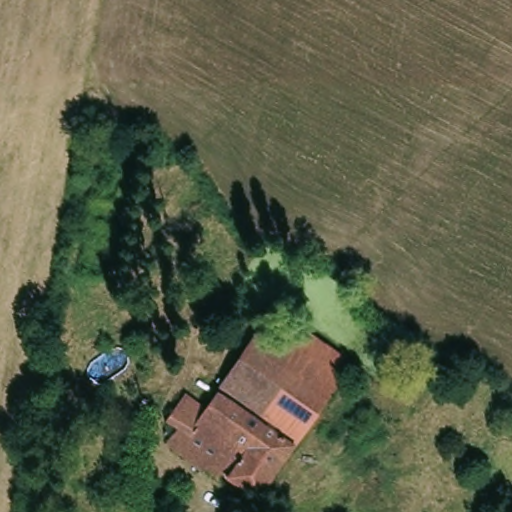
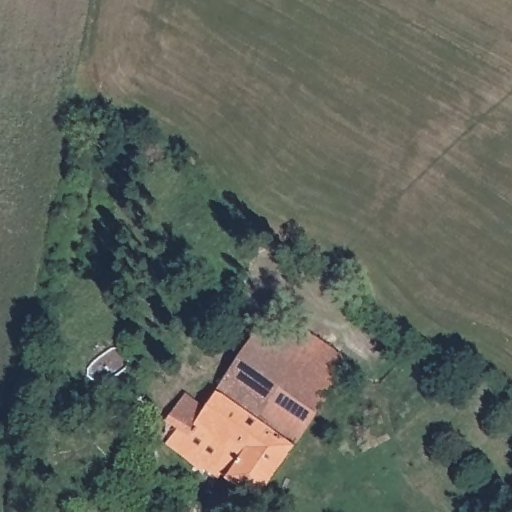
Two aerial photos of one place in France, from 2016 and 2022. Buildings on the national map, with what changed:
unchanged [(287,340),(298,325),(347,360),(335,376),(287,340)]
unchanged [(287,340),(335,376),(342,381),(255,498),(207,462),(202,471),(164,442),(172,431),(166,425),(187,397),(206,412),(268,326),(287,340)]

